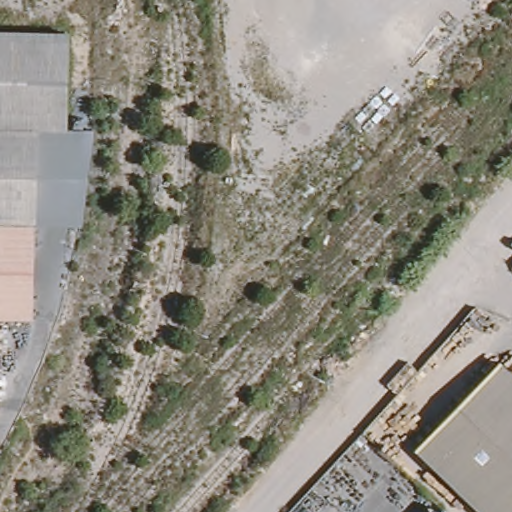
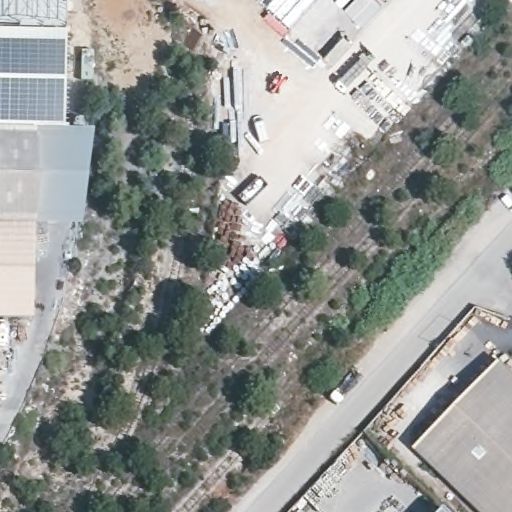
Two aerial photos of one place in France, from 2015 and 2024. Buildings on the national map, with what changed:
new [(0,29),(0,0),(67,0),(67,30),(0,29)]
new [(261,0),(312,0),(288,25),(261,0)]
unchanged [(70,130),(38,130),(37,226),(35,317),(1,317),(0,355),(0,28),(70,30),(70,130)]
unchanged [(92,130),(80,225),(37,226),(39,133),(38,130),(70,130),(92,130)]
unchanged [(512,379),(512,512),(486,512),(416,446),(493,362),(512,379)]

